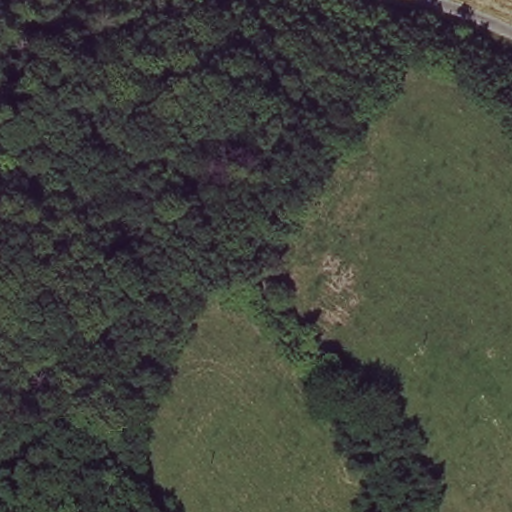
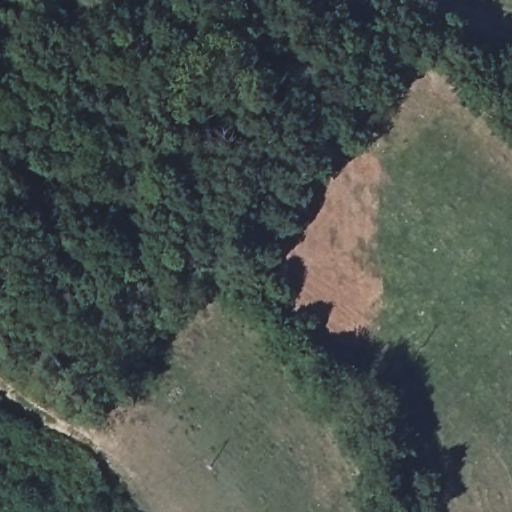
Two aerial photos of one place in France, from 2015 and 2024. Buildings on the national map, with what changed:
[]

